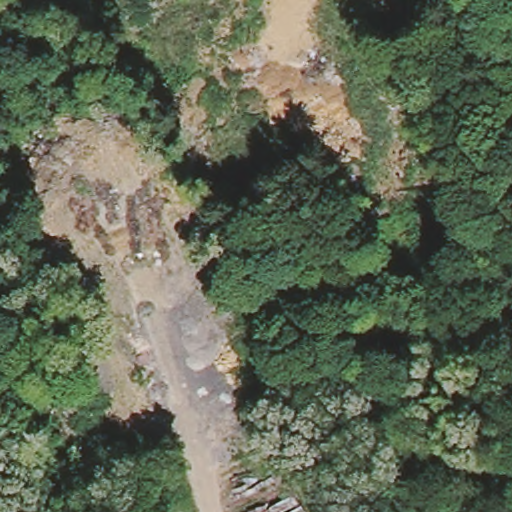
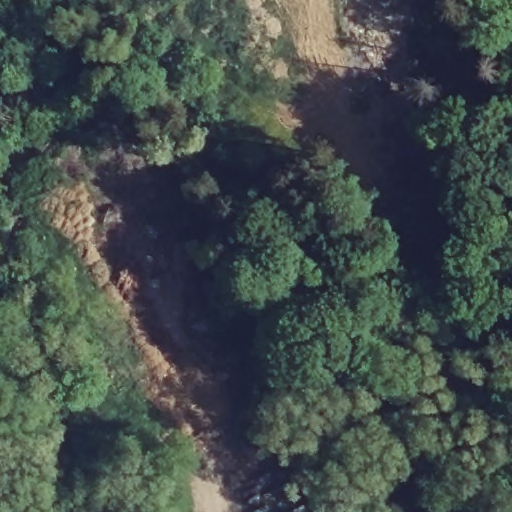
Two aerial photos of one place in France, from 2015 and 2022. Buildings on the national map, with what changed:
unchanged [(307,485),(313,500),(288,512),(252,512),(307,485)]

